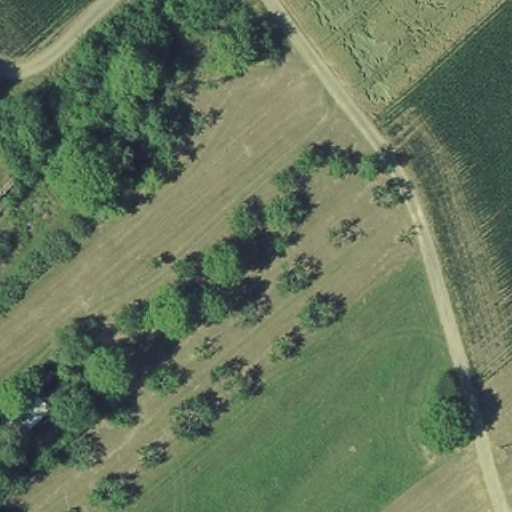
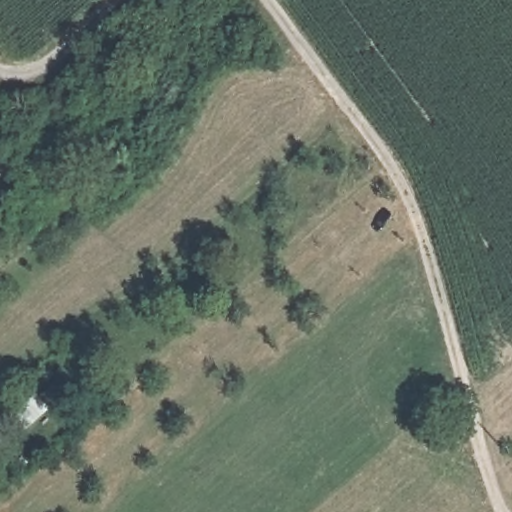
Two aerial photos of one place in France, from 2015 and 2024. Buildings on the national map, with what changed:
unchanged [(20,434),(7,415),(40,388),(53,407),(20,434)]

